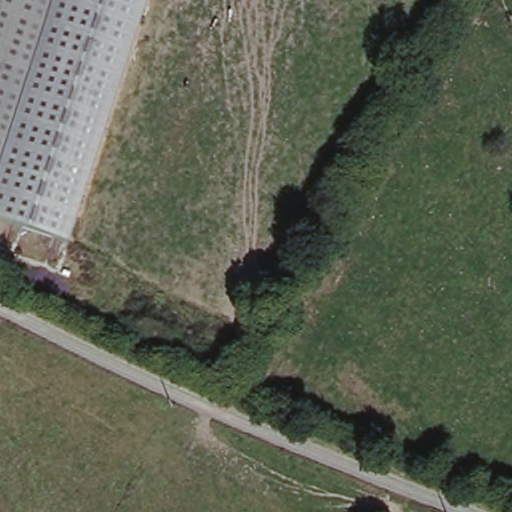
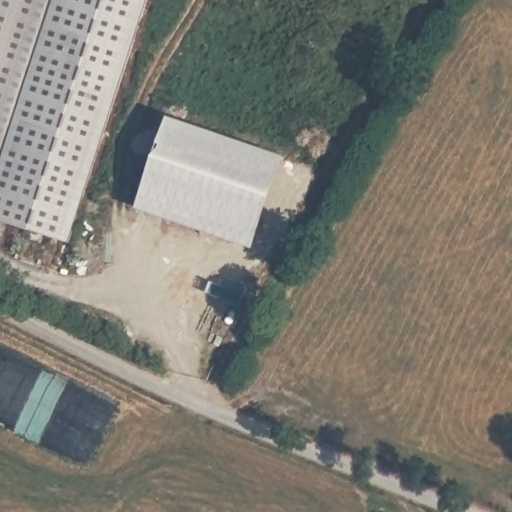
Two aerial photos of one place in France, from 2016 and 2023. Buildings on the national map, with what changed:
unchanged [(59,0),(0,183),(0,0),(59,0)]
unchanged [(0,220),(0,183),(59,0),(148,0),(69,240),(0,220)]
new [(287,168),(256,258),(139,219),(171,128),(287,168)]

